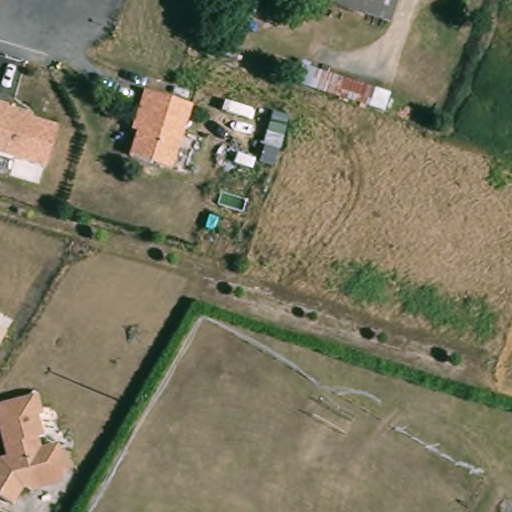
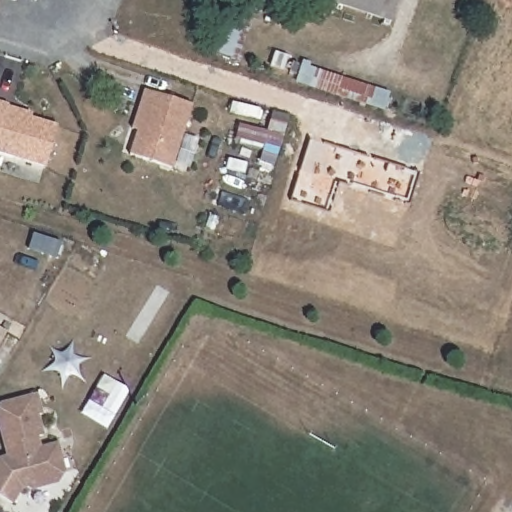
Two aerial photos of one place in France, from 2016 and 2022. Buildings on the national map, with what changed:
unchanged [(321,1),(322,0),(400,0),(392,24),(321,1)]
unchanged [(237,69),(206,55),(222,13),(254,21),(237,69)]
unchanged [(370,102),(314,86),(319,69),(373,84),(370,102)]
unchanged [(167,169),(125,155),(133,131),(128,129),(135,108),(140,91),(188,106),(167,169)]
unchanged [(7,101),(5,107),(55,123),(42,164),(0,150),(0,99),(7,101)]
unchanged [(7,329),(0,341),(0,324),(7,329)]
unchanged [(47,413),(40,414),(45,436),(41,437),(42,444),(60,441),(67,475),(62,485),(33,491),(26,487),(15,505),(0,497),(0,457),(5,456),(0,436),(0,401),(41,389),(47,413)]

